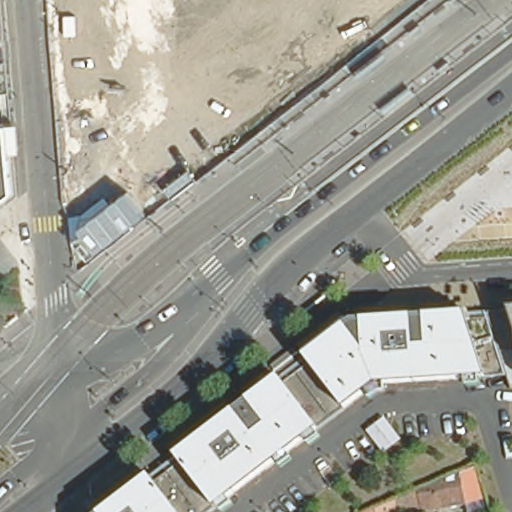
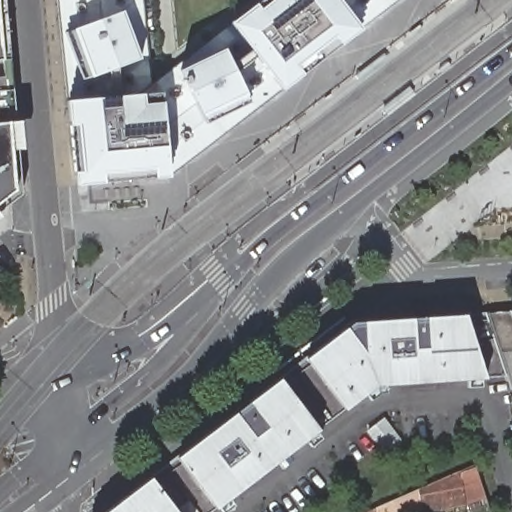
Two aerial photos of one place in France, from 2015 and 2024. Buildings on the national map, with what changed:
unchanged [(22,192),(0,210),(0,0),(5,0),(22,192)]
new [(56,0),(142,0),(150,85),(229,23),(282,92),(170,179),(161,91),(66,99),(56,0)]
demolished [(80,0),(111,0),(112,18),(80,20),(80,0)]
demolished [(181,4),(167,16),(155,0),(178,0),(181,4)]
demolished [(281,10),(241,39),(214,0),(274,0),(281,10)]
new [(259,0),(340,0),(362,29),(282,92),(229,23),(259,0)]
demolished [(375,38),(326,76),(286,19),(281,10),(274,0),(354,0),(375,38)]
new [(340,0),(400,0),(362,29),(340,0)]
new [(140,58),(92,77),(75,28),(123,10),(140,58)]
demolished [(248,47),(261,63),(284,46),(272,29),(286,19),(326,76),(278,113),(240,67),(233,59),(248,47)]
demolished [(131,76),(111,91),(110,92),(97,76),(90,81),(87,82),(81,84),(60,91),(59,73),(66,72),(64,28),(111,26),(112,57),(116,62),(125,56),(137,72),(131,76)]
new [(204,124),(180,70),(224,49),(249,103),(204,124)]
unchanged [(381,59),(353,80),(349,75),(377,53),(381,59)]
demolished [(145,137),(185,105),(167,83),(174,78),(174,79),(175,81),(194,66),(211,86),(224,76),(225,78),(240,67),(278,113),(245,139),(209,92),(195,104),(216,132),(170,169),(145,137)]
unchanged [(403,81),(407,86),(379,108),(375,103),(403,81)]
new [(161,91),(170,179),(75,188),(66,99),(161,91)]
unchanged [(221,422),(251,398),(315,348),(352,320),(485,312),(512,310),(512,388),(511,388),(505,374),(430,379),(373,383),(370,385),(329,417),(232,492),(208,512),(103,512),(122,497),(221,422)]
unchanged [(381,454),(364,431),(383,417),(400,439),(381,454)]
unchanged [(467,509),(466,503),(431,509),(420,511),(416,512),(393,512),(391,503),(400,498),(417,490),(460,469),(475,462),(484,497),(486,507),(467,512),(467,509)]
unchanged [(376,512),(373,512),(376,510),(376,512)]

